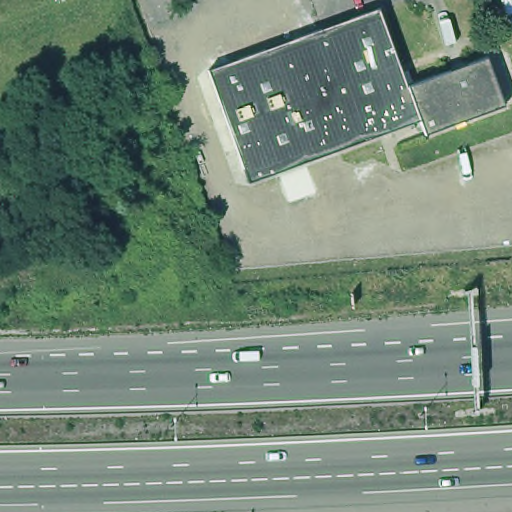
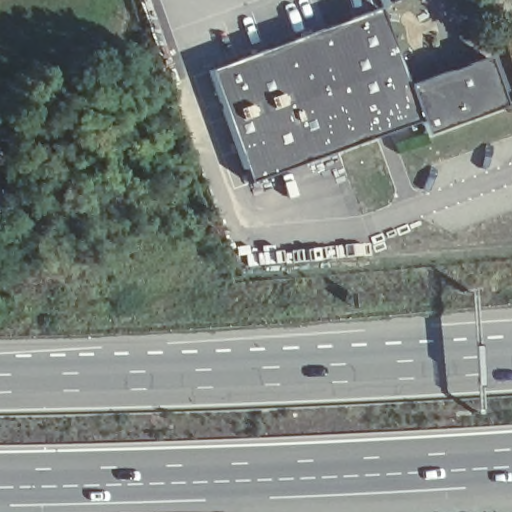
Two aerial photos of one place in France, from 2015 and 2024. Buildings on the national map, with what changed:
unchanged [(424,135),(419,121),(248,182),(207,69),(377,9),(407,87),(449,72),(452,66),(459,64),(464,66),(484,58),(502,107),(424,135)]

